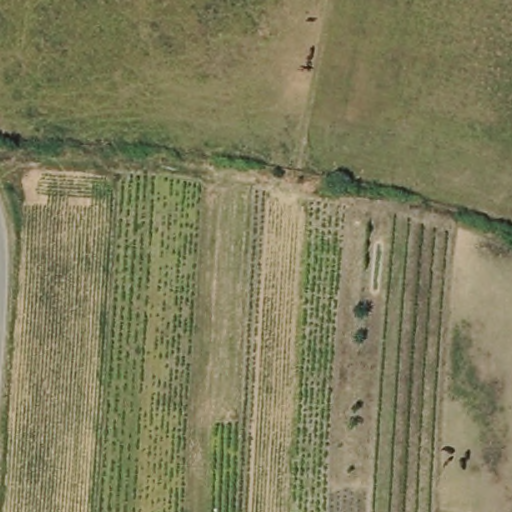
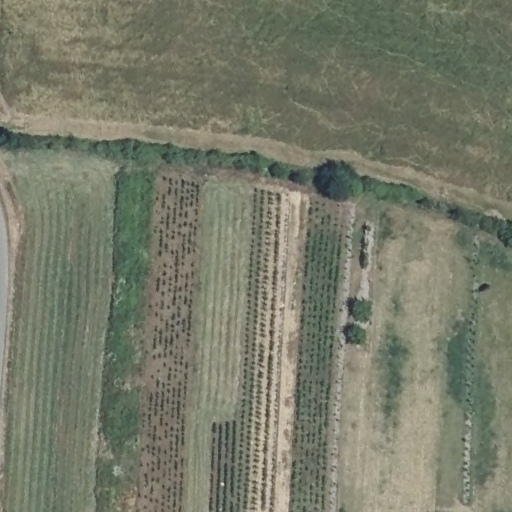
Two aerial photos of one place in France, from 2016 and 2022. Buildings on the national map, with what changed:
[]

